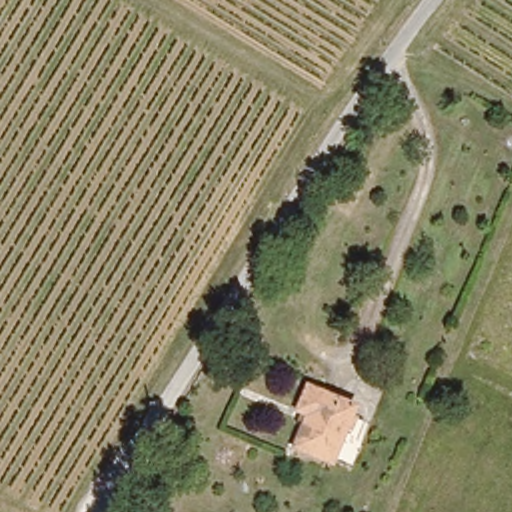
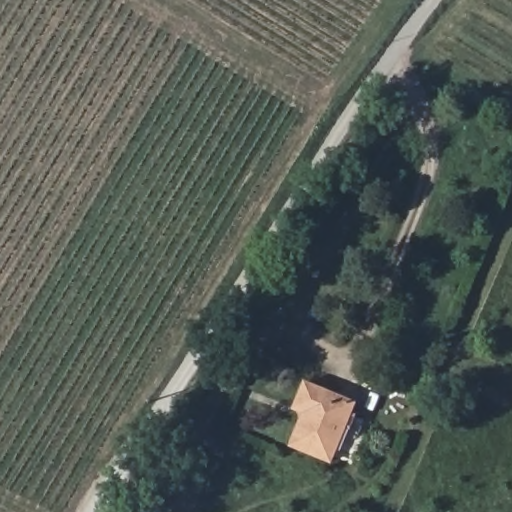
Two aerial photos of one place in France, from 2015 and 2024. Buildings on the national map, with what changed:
unchanged [(327,462),(290,444),(305,412),(299,409),(293,407),(305,383),(309,385),(354,407),(327,462)]

